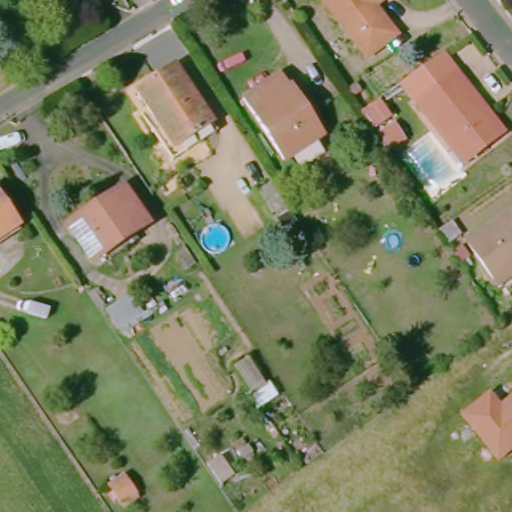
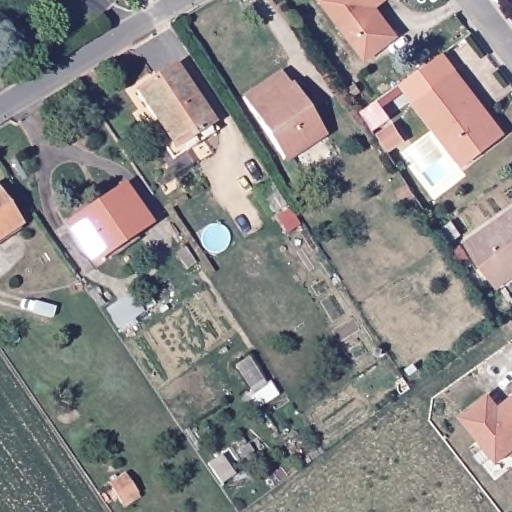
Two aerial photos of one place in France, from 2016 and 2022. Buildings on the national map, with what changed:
unchanged [(384,40),(359,59),(315,0),(372,0),(368,4),(391,34),(384,40)]
unchanged [(203,124),(166,148),(129,93),(166,68),(203,124)]
unchanged [(236,98),(273,75),(282,89),(286,87),(318,135),(278,162),(236,98)]
unchanged [(487,143),(463,162),(417,101),(447,77),(463,97),(494,138),(487,143)]
unchanged [(393,155),(382,140),(396,131),(407,146),(393,155)]
unchanged [(266,195),(279,188),(292,210),(281,218),(266,195)]
unchanged [(140,224),(84,260),(63,228),(119,192),(140,224)]
unchanged [(0,200),(15,223),(0,233),(0,200)]
unchanged [(488,274),(465,241),(453,250),(444,235),(456,226),(464,239),(512,203),(512,268),(494,281),(488,274)]
unchanged [(262,402),(244,374),(258,365),(276,391),(262,402)]
unchanged [(496,465),(459,417),(490,392),(500,404),(512,395),(512,452),(496,465)]
unchanged [(128,510),(116,490),(131,481),(143,500),(128,510)]

